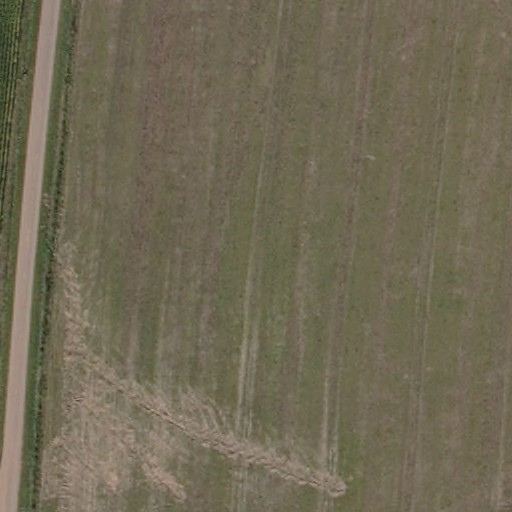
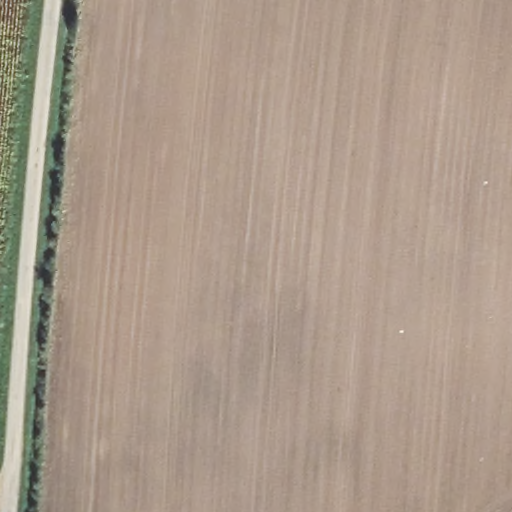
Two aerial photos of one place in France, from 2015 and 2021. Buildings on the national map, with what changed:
[]

